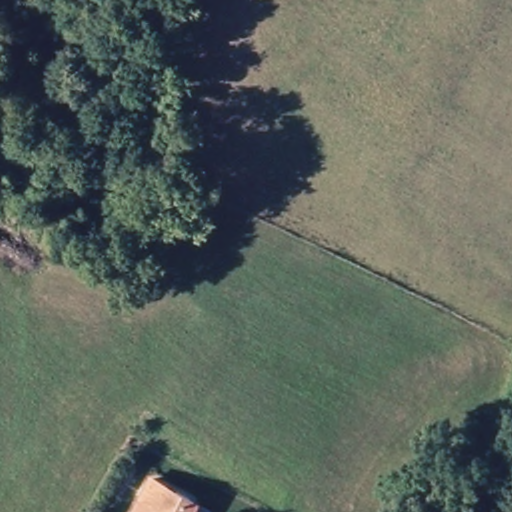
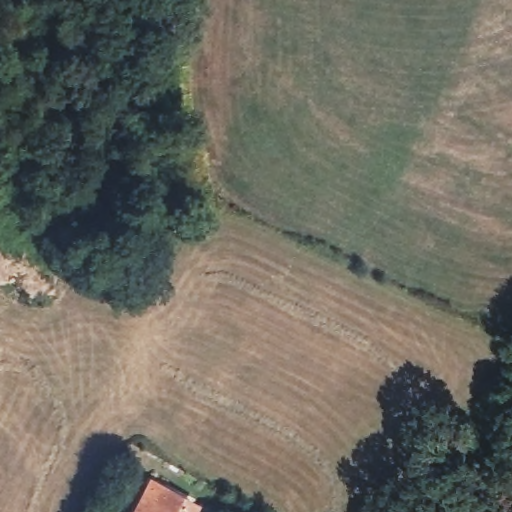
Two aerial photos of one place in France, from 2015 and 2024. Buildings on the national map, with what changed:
unchanged [(166,491),(158,512),(131,512),(144,481),(166,491)]
unchanged [(195,503),(191,512),(158,512),(166,491),(195,503)]

